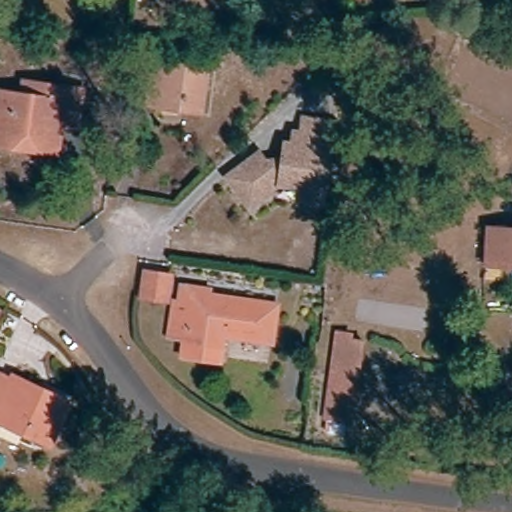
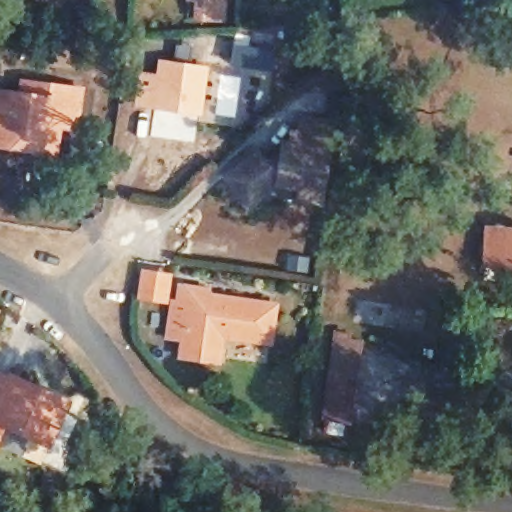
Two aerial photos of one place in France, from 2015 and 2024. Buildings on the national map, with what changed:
new [(191,20),(192,0),(228,0),(227,21),(191,20)]
unchanged [(144,107),(148,73),(151,60),(209,68),(202,115),(184,113),(159,109),(144,107)]
unchanged [(25,86),(52,89),(79,92),(75,133),(58,131),(55,160),(34,158),(0,154),(0,94),(24,97),(25,86)]
unchanged [(299,205),(300,191),(277,189),(251,209),(227,178),(257,153),(266,163),(278,164),(279,152),(290,153),(291,138),(301,139),(302,125),(331,127),(326,193),(324,208),(299,205)]
unchanged [(483,231),(512,232),(512,270),(480,269),(483,231)]
unchanged [(174,280),(170,306),(149,303),(152,277),(174,280)]
unchanged [(185,308),(187,293),(211,296),(211,302),(279,312),(274,347),(228,341),(225,357),(187,352),(193,309),(185,308)]
new [(0,320),(0,308),(4,310),(0,320)]
unchanged [(334,339),(357,343),(345,427),(322,423),(334,339)]
unchanged [(0,429),(0,383),(12,389),(16,379),(54,396),(72,404),(51,452),(0,429)]

